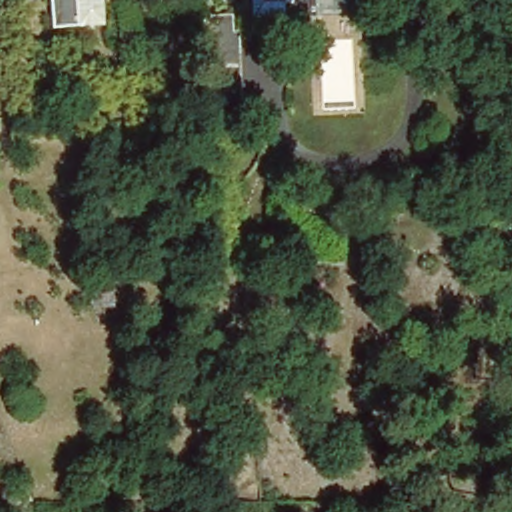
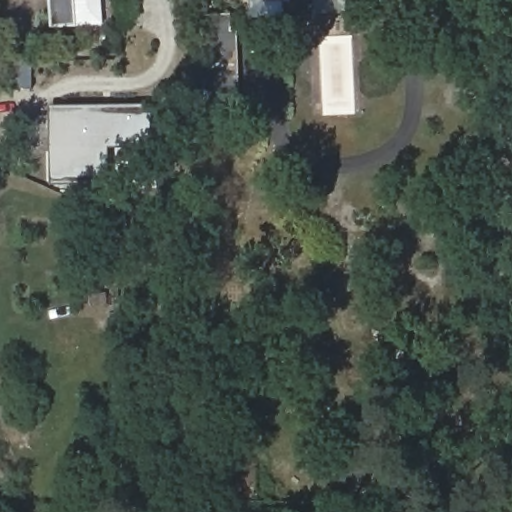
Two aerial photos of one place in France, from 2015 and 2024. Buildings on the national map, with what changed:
unchanged [(45,0),(70,0),(73,29),(48,30),(45,0)]
unchanged [(73,29),(70,0),(98,0),(100,27),(73,29)]
unchanged [(261,0),(280,0),(261,1),(261,0)]
unchanged [(281,19),(280,0),(309,0),(310,18),(281,19)]
unchanged [(241,124),(208,125),(207,118),(206,83),(205,64),(204,16),(233,14),(233,30),(240,30),(241,124)]
new [(151,105),(153,147),(109,147),(110,184),(51,185),(50,107),(151,105)]

